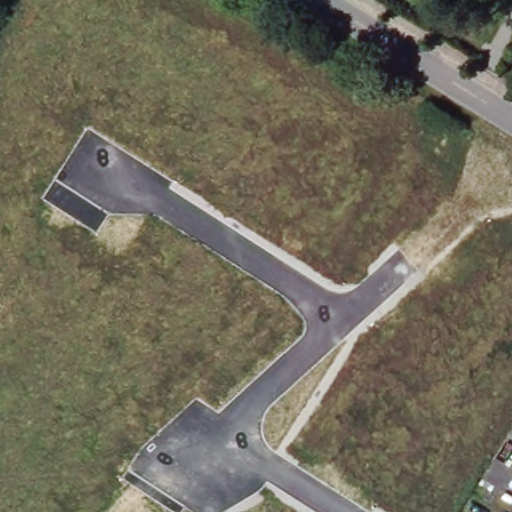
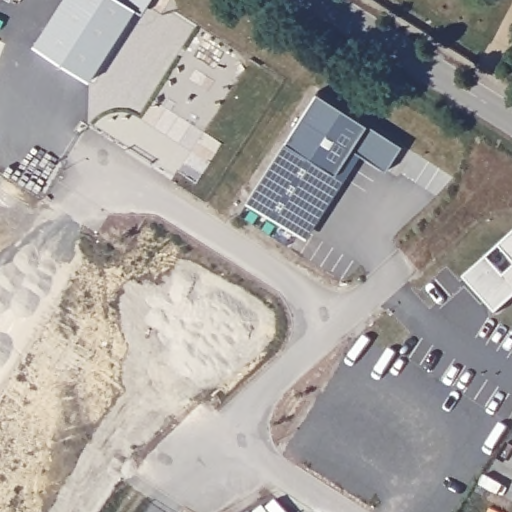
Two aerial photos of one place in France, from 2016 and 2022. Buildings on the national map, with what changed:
new [(147,5),(143,13),(136,9),(90,80),(35,45),(63,0),(151,0),(147,5)]
new [(299,233),(248,200),(318,91),(403,145),(387,170),(360,153),(306,238),(299,233)]
new [(500,244),(512,233),(512,258),(500,244)]
new [(487,255),(505,274),(512,268),(512,299),(497,312),(465,276),(487,255)]

